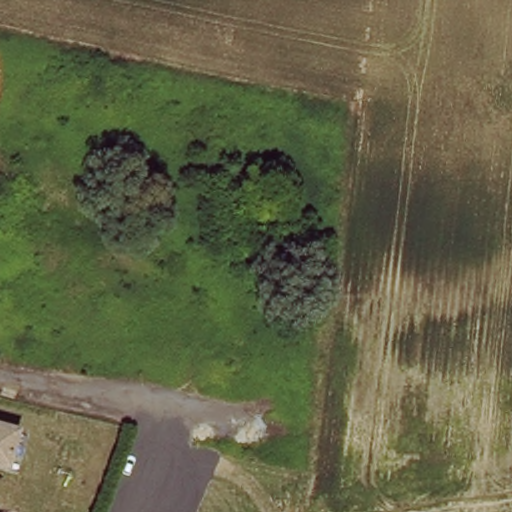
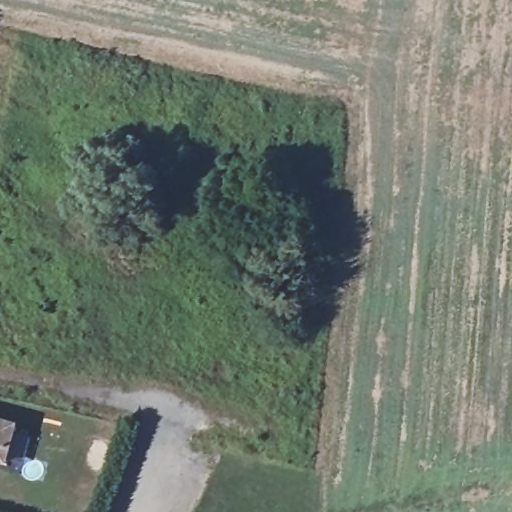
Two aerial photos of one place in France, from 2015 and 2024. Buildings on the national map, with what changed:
unchanged [(19,467),(0,461),(0,422),(29,430),(19,467)]

